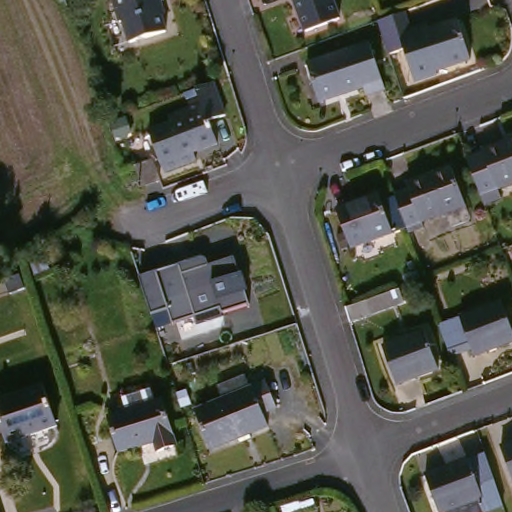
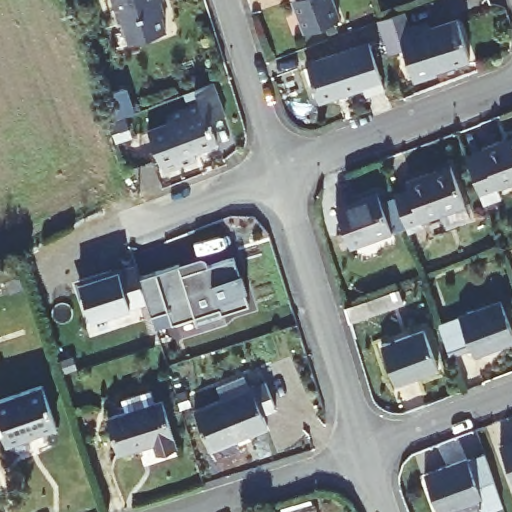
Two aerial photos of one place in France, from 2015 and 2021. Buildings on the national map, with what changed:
unchanged [(128,19),(128,18),(125,19),(119,0),(163,0),(165,7),(171,28),(134,39),(128,19)]
unchanged [(302,0),(337,0),(346,21),(313,34),(299,2),(303,0),(302,0)]
unchanged [(411,32),(429,25),(431,31),(459,22),(473,60),(438,72),(439,76),(417,83),(406,52),(391,57),(380,24),(405,15),(411,32)]
unchanged [(361,85),(318,103),(305,64),(368,40),(386,84),(363,94),(361,85)]
unchanged [(167,170),(162,154),(153,128),(171,123),(168,115),(201,103),(197,86),(215,79),(227,116),(216,122),(221,140),(199,149),(202,157),(167,170)]
unchanged [(504,193),(488,200),(484,190),(483,184),(471,155),(487,148),(486,146),(512,136),(512,179),(501,184),(504,193)]
unchanged [(440,208),(423,215),(424,218),(411,223),(406,212),(396,185),(411,179),(409,174),(447,159),(468,211),(445,220),(440,208)]
unchanged [(131,176),(158,168),(166,188),(138,198),(131,176)]
unchanged [(341,206),(380,190),(396,230),(358,245),(341,206)]
unchanged [(225,314),(197,324),(194,316),(156,328),(141,277),(206,257),(210,266),(233,258),(239,273),(242,272),(249,291),(245,293),(249,305),(225,314)]
new [(138,278),(141,277),(148,302),(129,306),(131,309),(91,322),(84,297),(80,300),(74,282),(134,265),(138,278)]
unchanged [(393,295),(398,309),(349,327),(345,312),(393,295)]
unchanged [(463,360),(451,322),(509,301),(512,308),(512,348),(489,357),(486,352),(463,360)]
unchanged [(391,346),(423,333),(438,373),(405,385),(391,346)]
unchanged [(0,401),(48,387),(58,424),(11,440),(0,401)]
unchanged [(191,412),(219,401),(217,394),(234,390),(236,396),(266,387),(275,413),(264,417),(268,430),(204,452),(191,412)]
unchanged [(153,439),(124,448),(116,414),(164,401),(175,444),(156,451),(153,439)]
unchanged [(512,439),(512,456),(506,441),(512,439)]
unchanged [(443,506),(438,509),(426,470),(479,450),(501,503),(477,512),(445,512),(443,506)]

